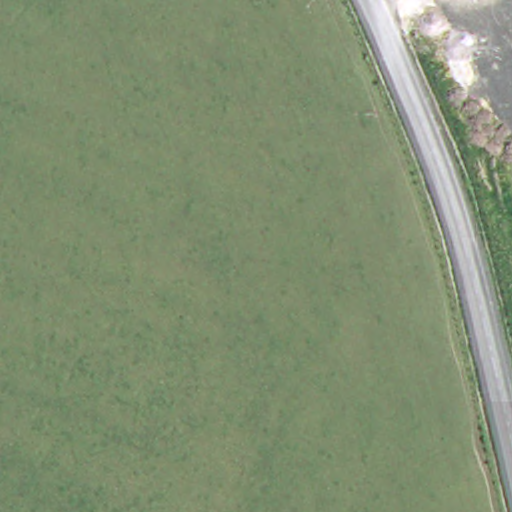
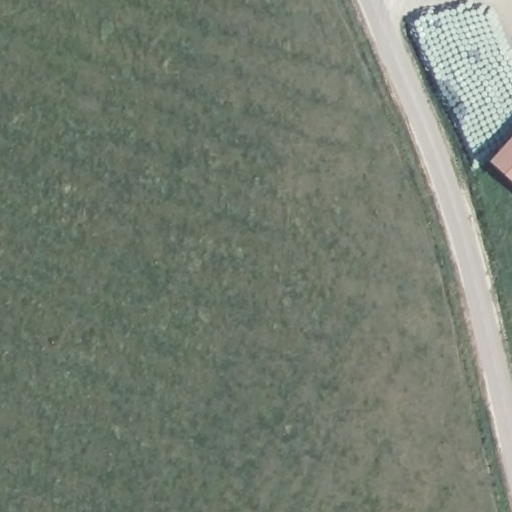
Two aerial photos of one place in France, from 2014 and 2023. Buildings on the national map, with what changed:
new [(492,162),(512,139),(512,180),(492,162)]

